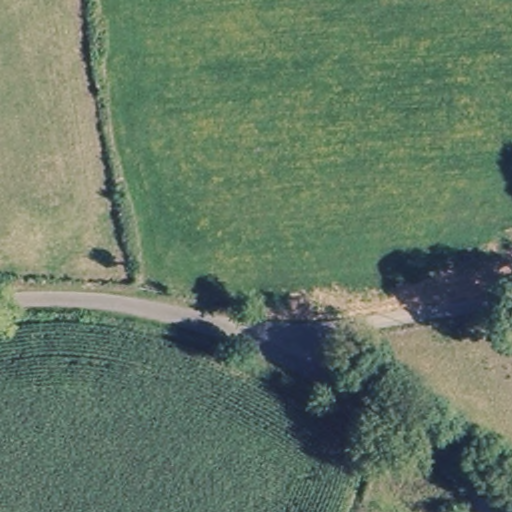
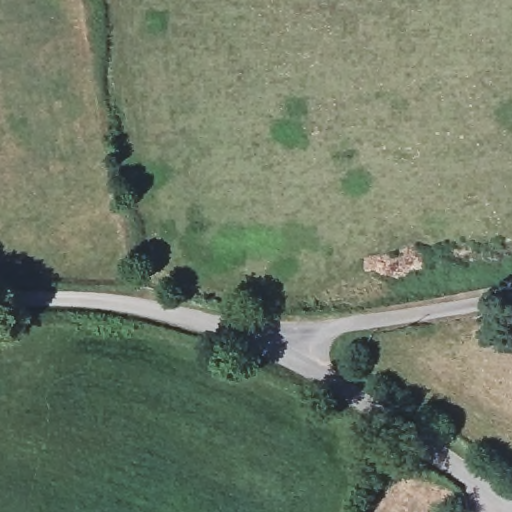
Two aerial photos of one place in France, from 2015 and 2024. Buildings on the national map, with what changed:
[]

